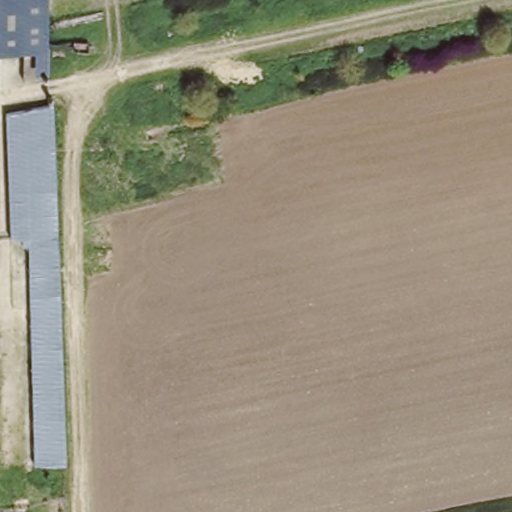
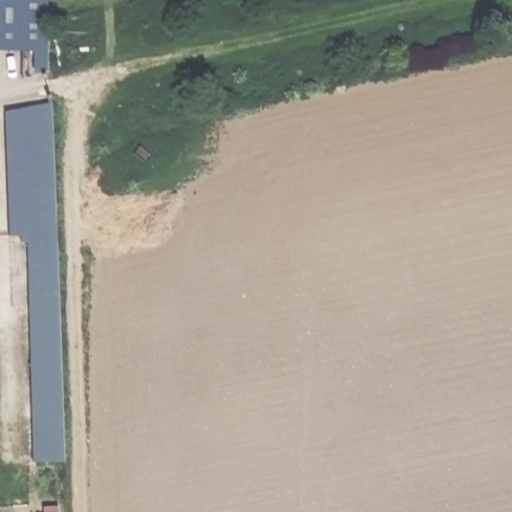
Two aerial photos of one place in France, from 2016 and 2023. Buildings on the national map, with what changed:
unchanged [(33,55),(33,47),(0,48),(0,0),(42,0),(43,21),(45,55),(44,69),(32,69),(33,55)]
unchanged [(33,460),(27,232),(12,232),(8,107),(50,106),(52,144),(62,457),(33,460)]

